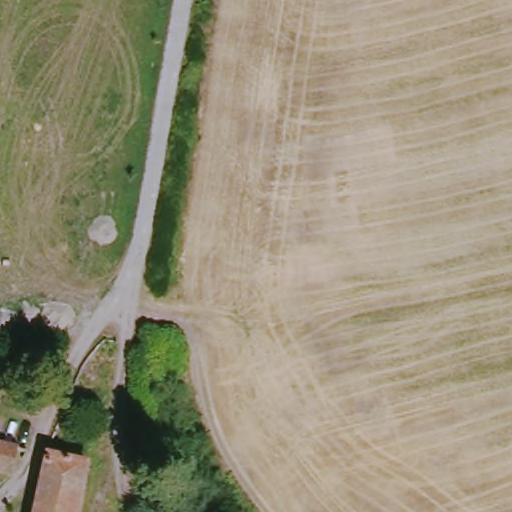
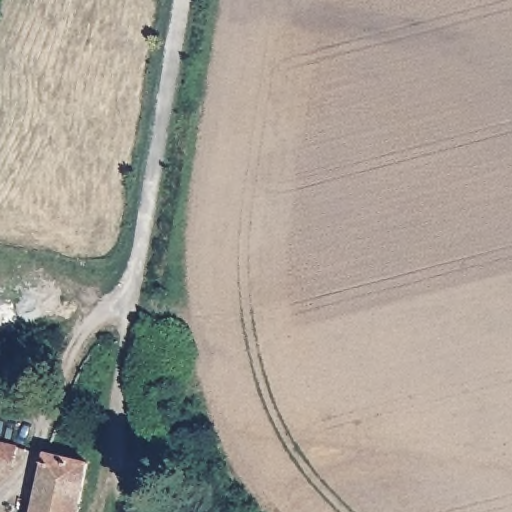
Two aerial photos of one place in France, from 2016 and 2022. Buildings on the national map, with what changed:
unchanged [(13,441),(6,472),(0,471),(0,439),(13,441)]
unchanged [(83,462),(74,512),(29,512),(42,453),(83,462)]

